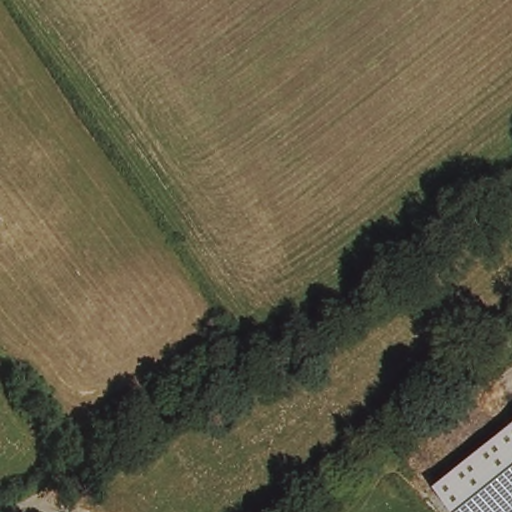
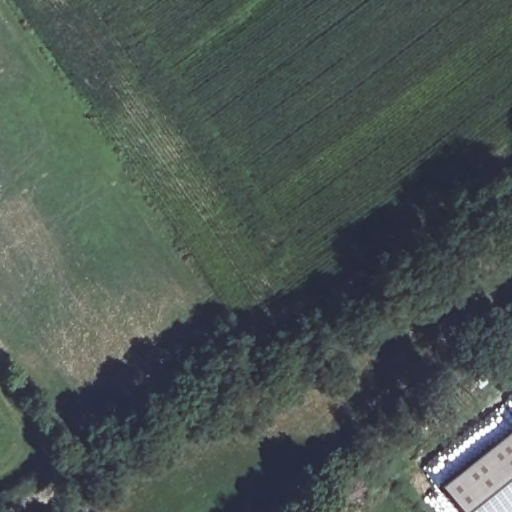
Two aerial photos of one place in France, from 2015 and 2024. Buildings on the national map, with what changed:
unchanged [(438,487),(512,427),(512,512),(460,512),(438,487)]

